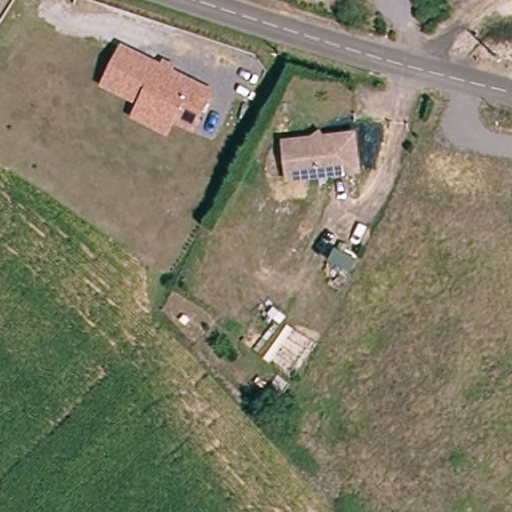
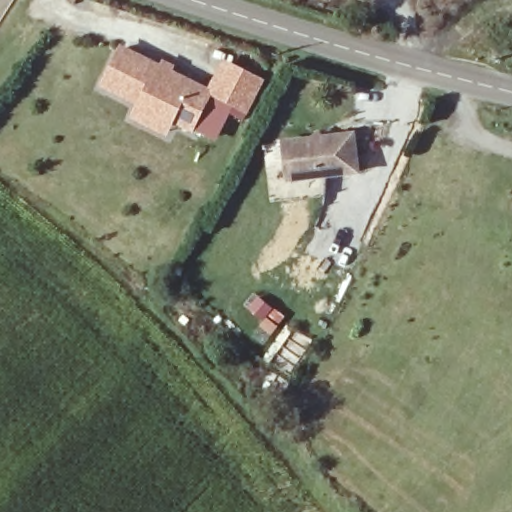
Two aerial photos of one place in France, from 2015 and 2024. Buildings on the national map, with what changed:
unchanged [(121,44),(159,61),(162,56),(178,63),(177,68),(214,86),(192,129),(178,122),(170,136),(131,116),(137,100),(104,80),(121,44)]
new [(214,86),(210,85),(223,59),(265,80),(247,115),(243,121),(229,114),(216,140),(192,129),(214,86)]
unchanged [(291,182),(287,145),(311,142),(321,134),(326,140),(356,136),(360,174),(291,182)]
demolished [(273,325),(295,339),(278,364),(260,348),(273,325)]

